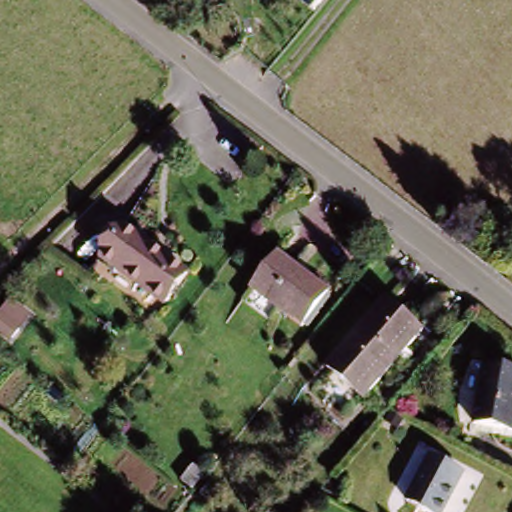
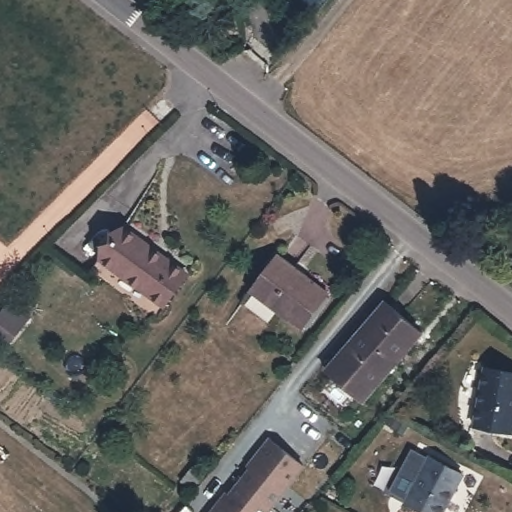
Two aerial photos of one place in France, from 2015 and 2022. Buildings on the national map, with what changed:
new [(298,3),(300,0),(323,0),(313,14),(298,3)]
unchanged [(179,280),(158,311),(94,264),(117,233),(179,280)]
unchanged [(301,283),(304,278),(328,299),(294,333),(246,290),(274,259),(301,283)]
unchanged [(320,371),(384,303),(403,320),(420,336),(409,347),(356,404),(320,371)]
unchanged [(512,425),(511,433),(471,424),(483,369),(512,375),(512,425)]
new [(223,505),(226,506),(259,466),(256,463),(273,444),(306,470),(272,512),(217,512),(223,505)]
unchanged [(459,481),(440,512),(410,512),(399,506),(427,462),(459,481)]
unchanged [(204,472),(188,489),(179,480),(195,464),(204,472)]
unchanged [(197,512),(184,512),(190,505),(197,512)]

